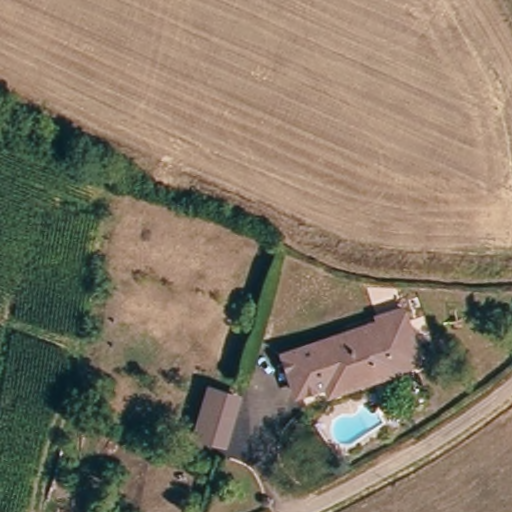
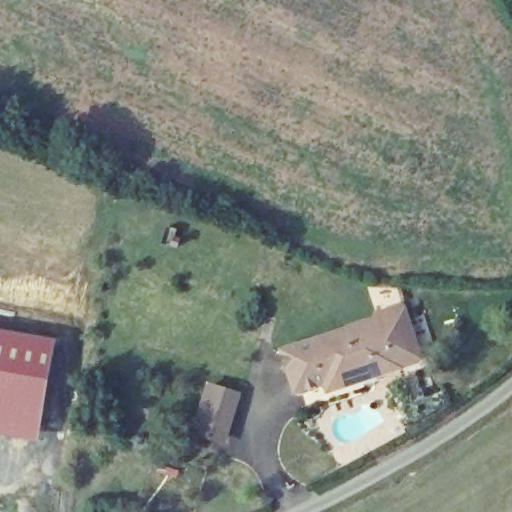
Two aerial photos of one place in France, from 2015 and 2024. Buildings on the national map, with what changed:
unchanged [(318,390),(316,384),(288,391),(276,349),(336,332),(367,324),(366,318),(392,309),(412,366),(392,373),(392,376),(359,387),(321,399),(318,390)]
new [(0,332),(57,343),(38,443),(0,436),(0,332)]
unchanged [(241,395),(226,448),(190,438),(208,385),(241,395)]

